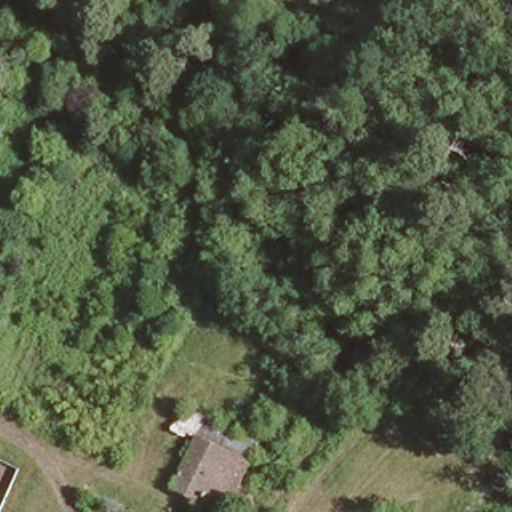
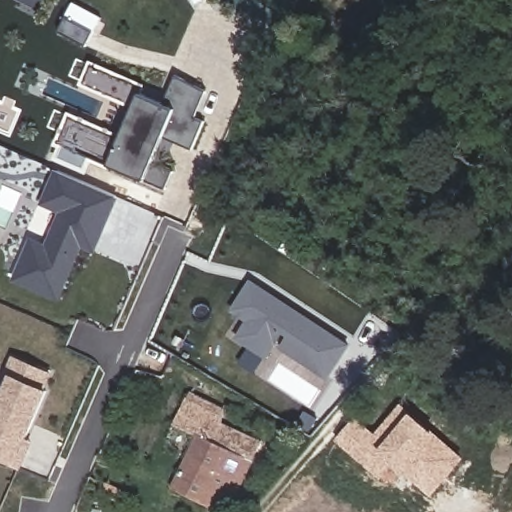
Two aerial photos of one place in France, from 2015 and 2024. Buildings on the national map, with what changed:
new [(73,4),(100,17),(87,45),(59,32),(70,7),(73,4)]
new [(172,152),(161,149),(155,163),(174,172),(166,189),(148,181),(109,165),(108,169),(92,162),(86,173),(55,159),(59,147),(55,145),(69,111),(124,134),(135,107),(81,84),(90,59),(148,84),(141,95),(165,104),(179,77),(209,91),(198,117),(207,121),(195,149),(177,141),(172,152)]
new [(39,205),(58,171),(119,198),(94,252),(81,247),(58,301),(11,281),(29,237),(46,244),(59,213),(39,205)]
new [(329,381),(280,350),(288,337),(284,335),(268,361),(234,339),(245,322),(230,312),(251,278),(352,344),(329,381)]
new [(22,443),(30,447),(21,469),(0,460),(0,385),(13,356),(53,373),(22,443)]
unchanged [(224,445),(202,435),(178,422),(188,402),(233,425),(224,445)]
new [(337,441),(357,417),(376,432),(403,402),(413,411),(439,433),(466,458),(433,496),(407,473),(394,465),(382,479),(337,441)]
unchanged [(224,445),(233,425),(261,437),(225,509),(175,482),(202,435),(224,445)]

